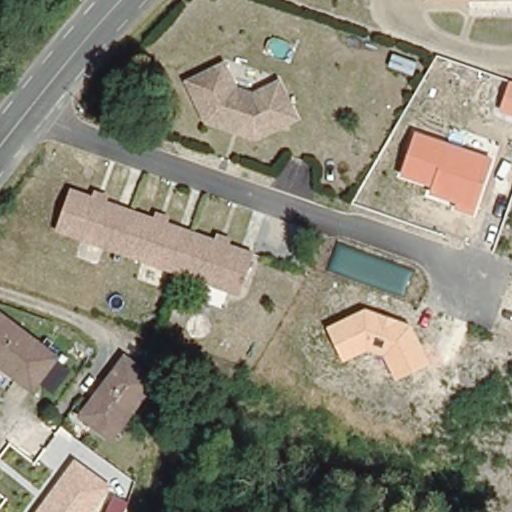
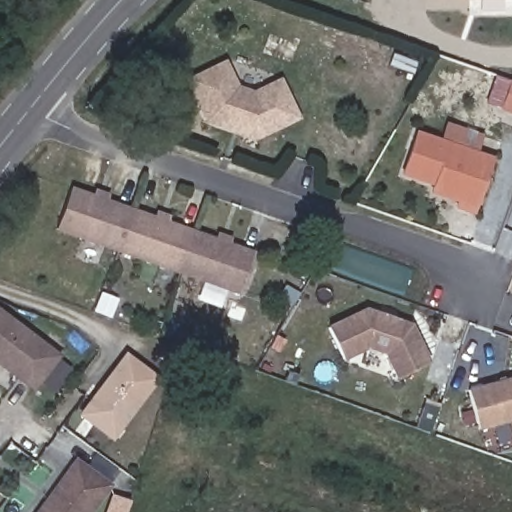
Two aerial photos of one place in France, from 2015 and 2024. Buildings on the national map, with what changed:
unchanged [(256,141),(201,123),(184,80),(226,61),(238,85),(256,91),(280,80),(300,120),(256,141)]
unchanged [(509,80),(512,82),(512,114),(497,110),(509,80)]
unchanged [(441,140),(446,122),(483,134),(477,152),(493,157),(475,215),(452,209),(454,202),(428,195),(430,186),(399,175),(414,131),(441,140)]
unchanged [(254,252),(238,296),(57,234),(71,188),(254,252)]
demolished [(303,284),(289,305),(265,291),(280,268),(303,284)]
unchanged [(396,379),(385,355),(366,350),(343,362),(327,327),(366,308),(410,322),(429,363),(396,379)]
unchanged [(55,355),(32,385),(0,362),(0,315),(55,355)]
unchanged [(123,355),(154,378),(107,436),(78,412),(123,355)]
new [(466,390),(512,377),(512,422),(478,431),(466,390)]
unchanged [(92,512),(41,512),(48,503),(42,499),(77,457),(113,484),(92,512)]

